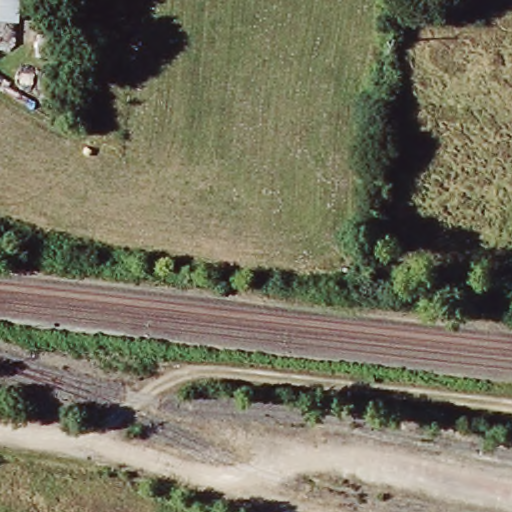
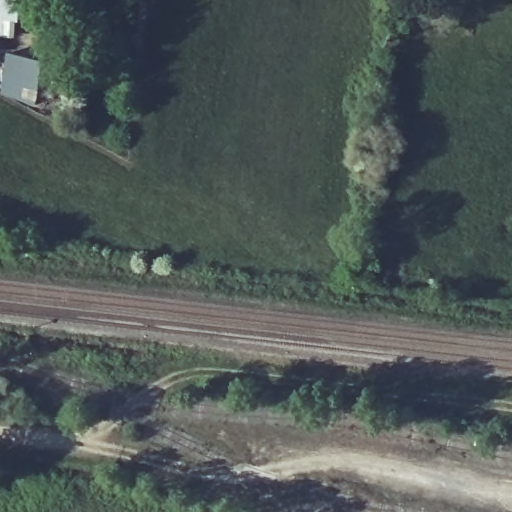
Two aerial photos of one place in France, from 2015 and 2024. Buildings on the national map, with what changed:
new [(19,22),(0,20),(0,0),(21,0),(19,22)]
unchanged [(32,0),(58,0),(57,2),(31,4),(32,0)]
new [(36,110),(1,93),(6,53),(40,61),(36,110)]

